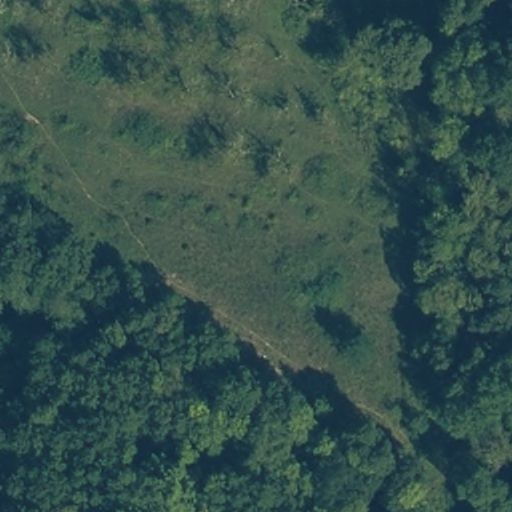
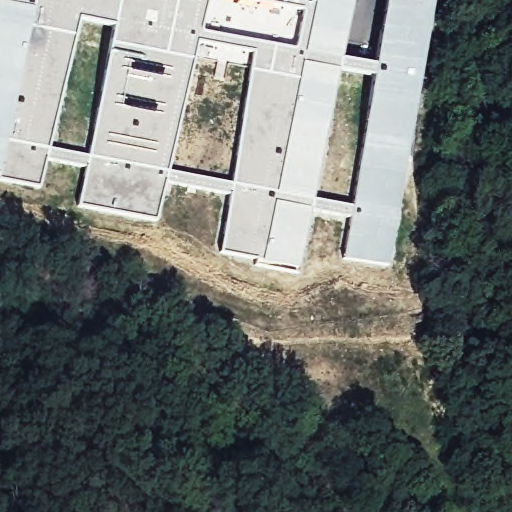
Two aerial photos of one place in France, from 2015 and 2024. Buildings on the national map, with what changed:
new [(222,256),(229,199),(166,187),(158,225),(156,225),(80,210),(86,172),(48,164),(41,192),(0,184),(0,185),(0,0),(116,0),(118,1),(119,0),(352,0),(339,65),(373,71),(383,0),(408,0),(429,10),(388,271),(343,264),(349,222),(311,215),(299,270),(222,256)]

